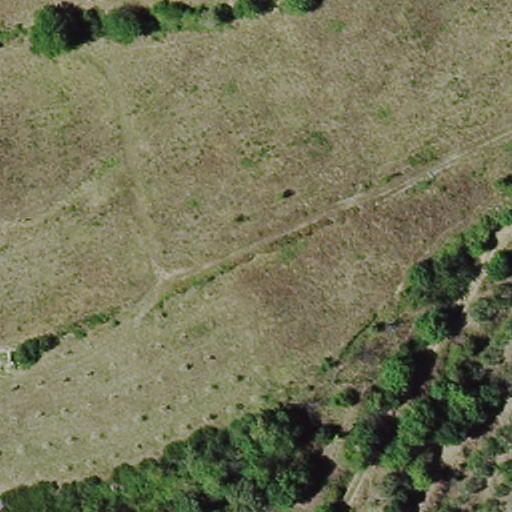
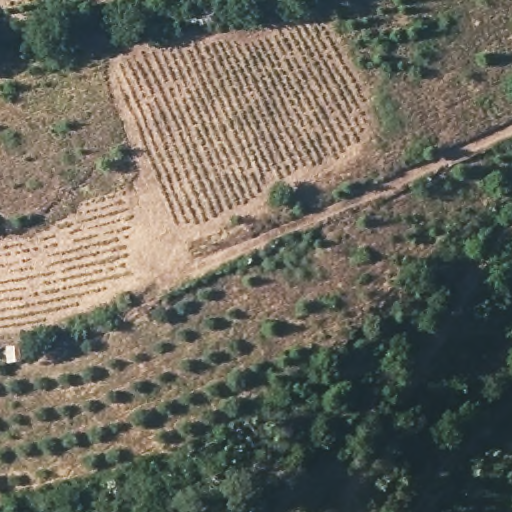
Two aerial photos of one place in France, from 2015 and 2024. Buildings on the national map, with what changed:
unchanged [(3,357),(16,356),(18,369),(5,372),(3,357)]

